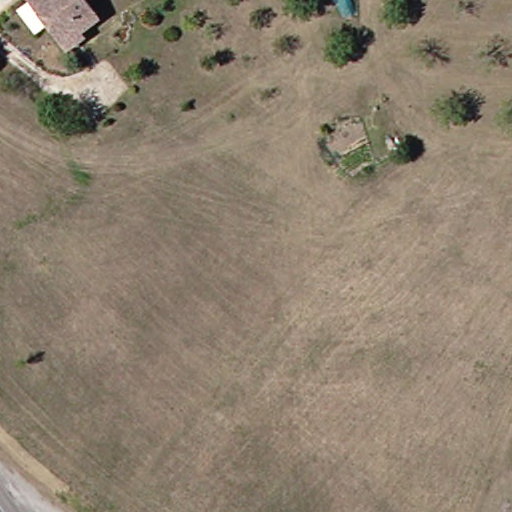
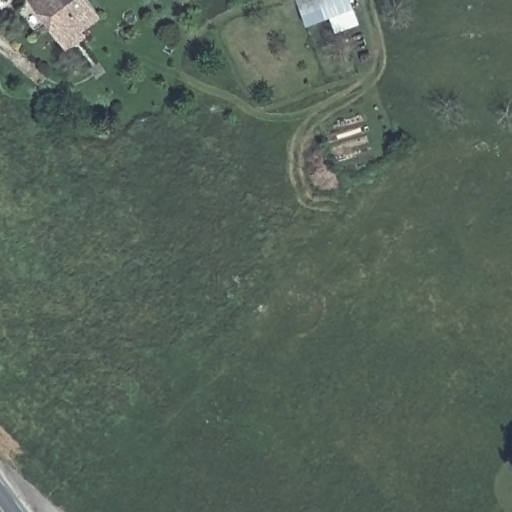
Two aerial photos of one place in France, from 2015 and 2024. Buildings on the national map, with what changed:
unchanged [(56,35),(30,0),(85,0),(95,14),(80,27),(64,45),(56,35)]
new [(356,10),(305,27),(296,0),(352,0),(356,10)]

